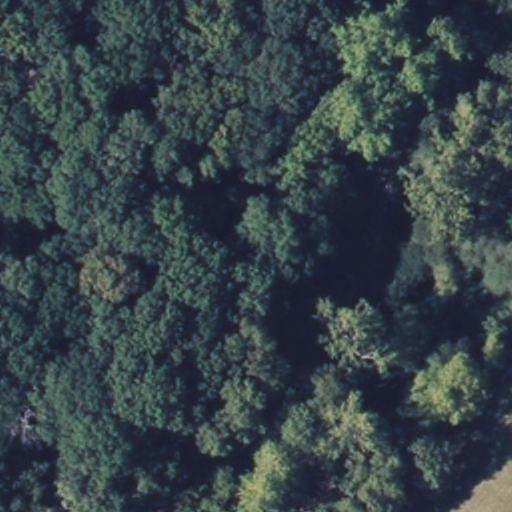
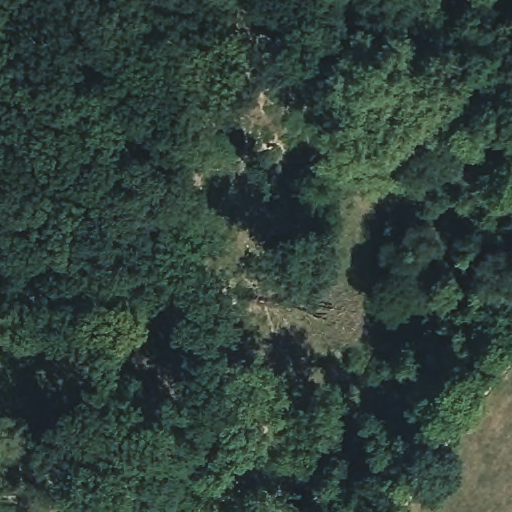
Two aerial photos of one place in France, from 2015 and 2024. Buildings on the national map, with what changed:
[]

